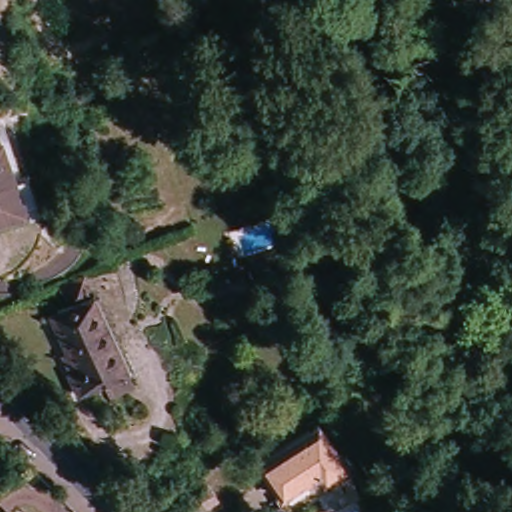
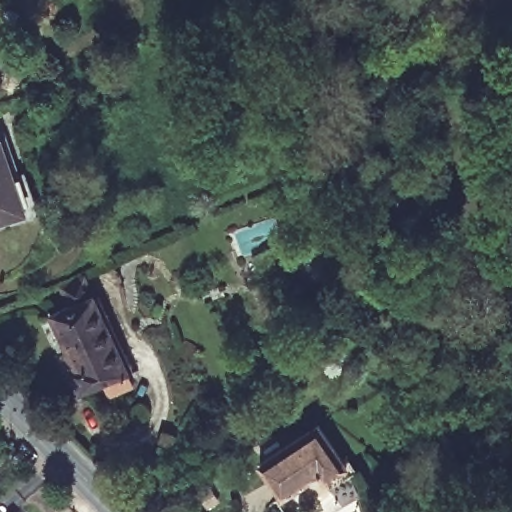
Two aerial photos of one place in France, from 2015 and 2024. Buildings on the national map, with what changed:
unchanged [(36,208),(0,220),(0,141),(9,139),(36,208)]
unchanged [(100,267),(122,327),(142,375),(85,394),(76,372),(82,370),(60,310),(85,302),(75,278),(100,267)]
unchanged [(259,455),(327,427),(346,474),(321,486),(317,474),(275,492),(259,455)]

